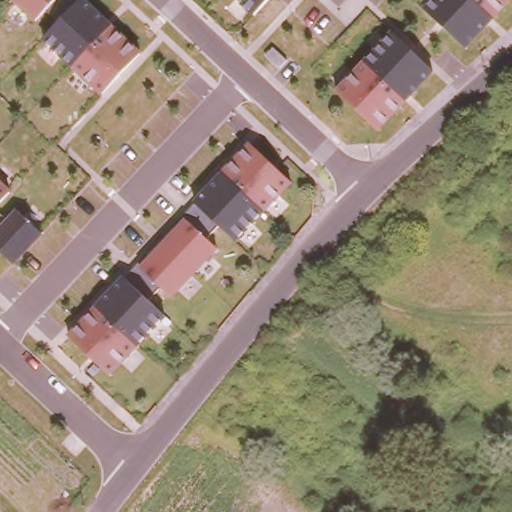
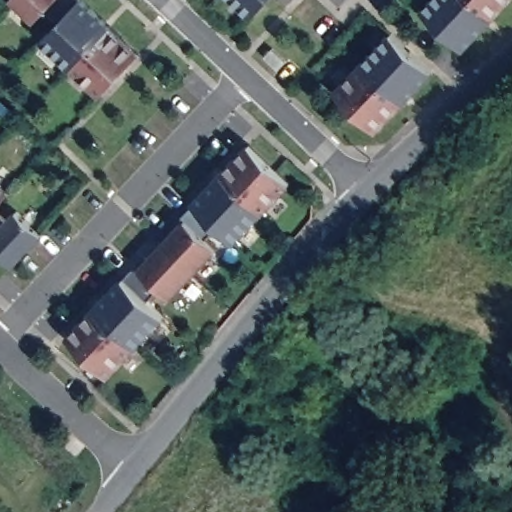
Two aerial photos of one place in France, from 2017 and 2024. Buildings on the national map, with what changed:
unchanged [(139,53),(103,95),(41,38),(55,22),(45,11),(35,22),(12,0),(83,0),(139,53)]
unchanged [(251,19),(231,0),(268,0),(251,19)]
unchanged [(424,10),(433,0),(512,0),(465,51),(424,10)]
unchanged [(436,72),(380,134),(336,91),(390,31),(436,72)]
unchanged [(291,182),(236,242),(193,203),(250,144),(291,182)]
unchanged [(10,191),(0,202),(0,183),(10,191)]
unchanged [(43,233),(13,266),(0,254),(0,216),(6,221),(17,210),(43,233)]
unchanged [(218,249),(171,299),(140,269),(186,218),(218,249)]
unchanged [(165,315),(110,376),(69,338),(123,277),(165,315)]

